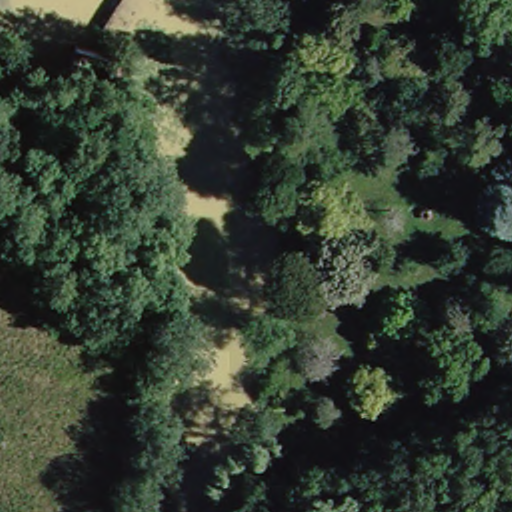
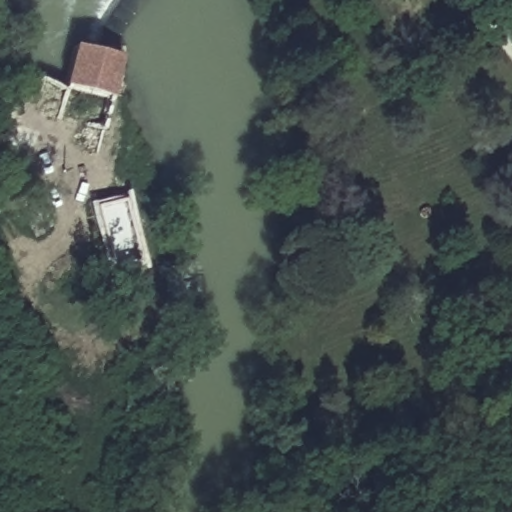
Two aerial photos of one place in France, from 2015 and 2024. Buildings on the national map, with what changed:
new [(115,96),(66,86),(75,46),(122,55),(115,96)]
new [(136,260),(109,267),(94,209),(122,201),(136,260)]

